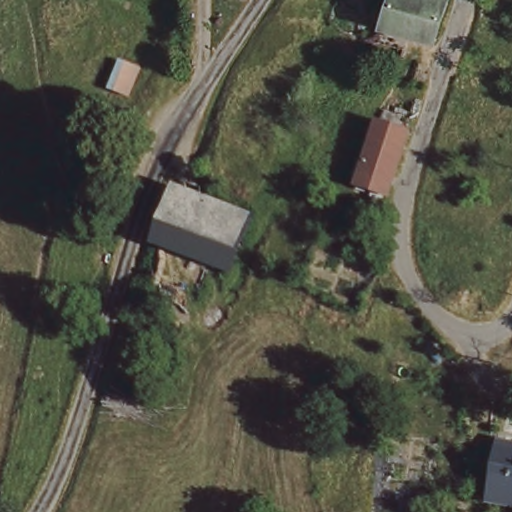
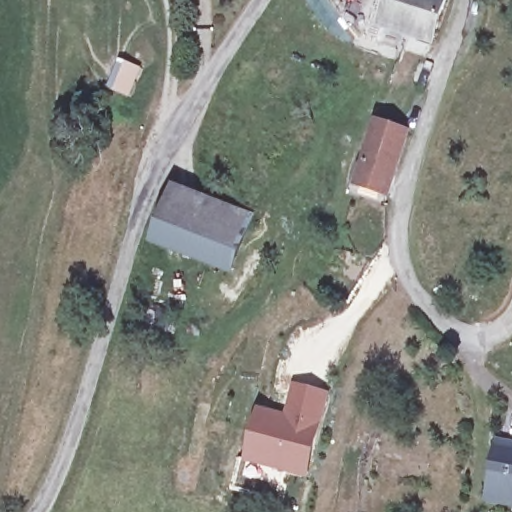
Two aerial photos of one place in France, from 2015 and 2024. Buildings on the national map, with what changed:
unchanged [(443,4),(432,41),(385,25),(392,0),(432,0),(443,4)]
unchanged [(401,141),(383,200),(356,192),(375,133),(401,141)]
unchanged [(175,192),(197,201),(180,250),(158,241),(175,192)]
unchanged [(248,220),(232,269),(229,268),(180,250),(197,201),(248,220)]
new [(258,407),(285,414),(293,382),(330,392),(308,478),(245,464),(258,407)]
unchanged [(489,499),(500,442),(512,444),(512,487),(509,503),(489,499)]

